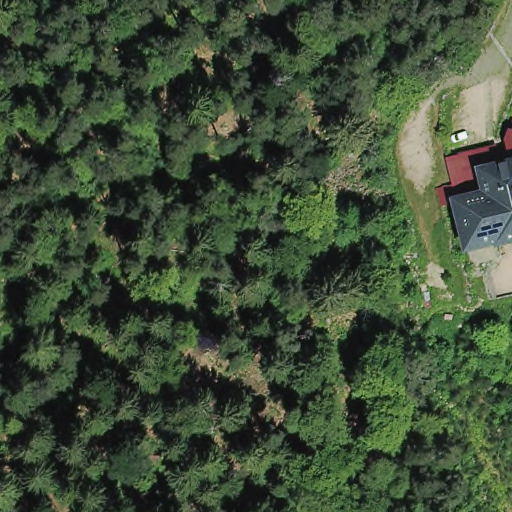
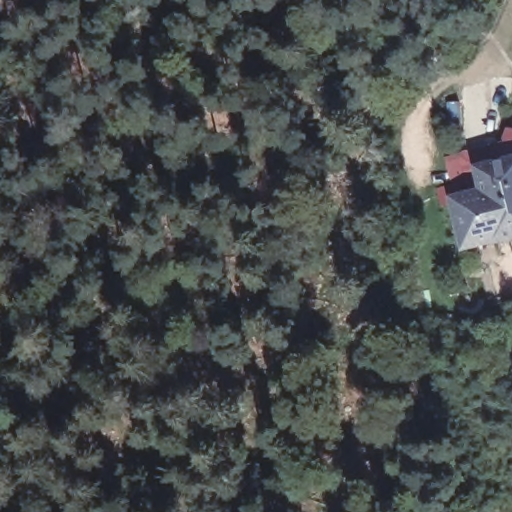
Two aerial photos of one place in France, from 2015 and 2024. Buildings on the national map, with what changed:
unchanged [(504,245),(495,205),(477,209),(473,193),(468,171),(466,164),(505,154),(506,162),(512,161),(512,249),(505,250),(504,245)]
unchanged [(473,193),(477,209),(495,205),(504,245),(464,253),(450,198),(473,193)]

